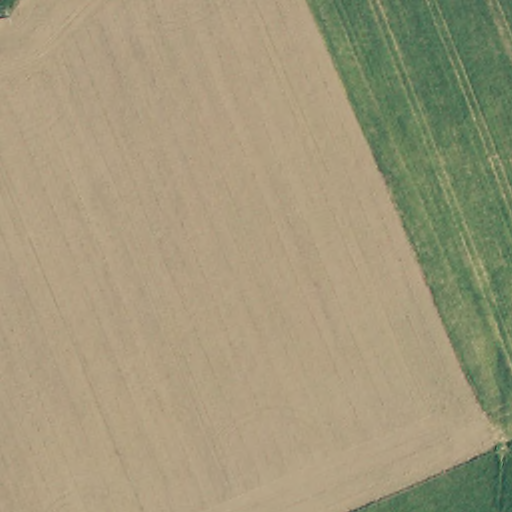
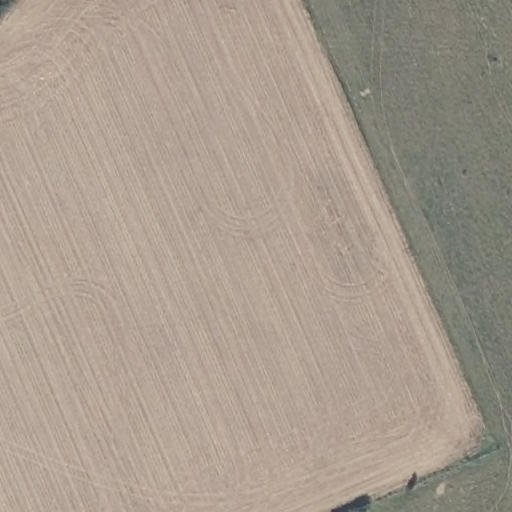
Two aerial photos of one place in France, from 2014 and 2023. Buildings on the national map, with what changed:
[]

